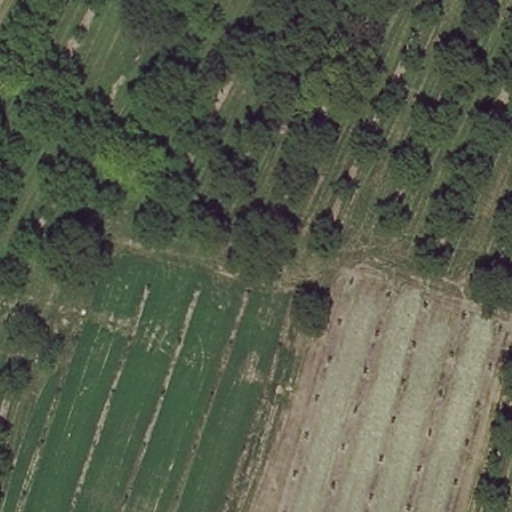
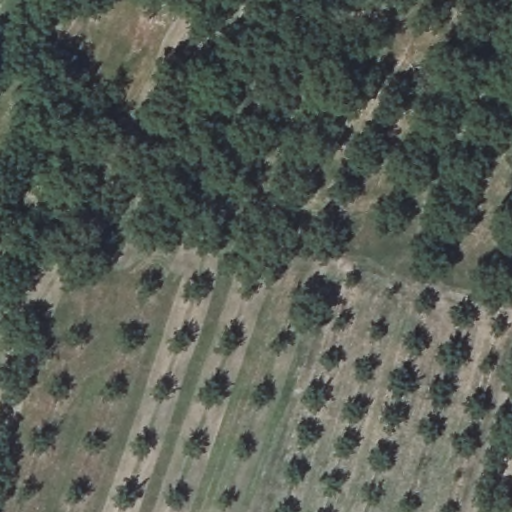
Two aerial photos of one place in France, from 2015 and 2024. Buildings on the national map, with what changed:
[]

